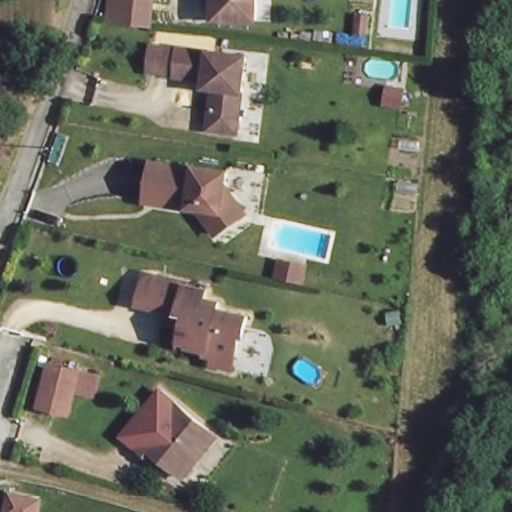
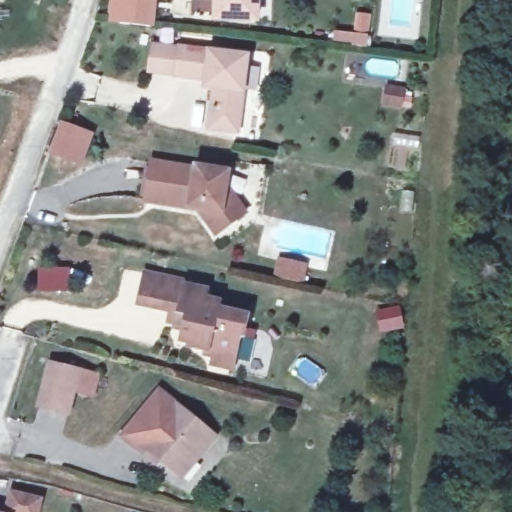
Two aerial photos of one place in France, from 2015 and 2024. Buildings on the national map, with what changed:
unchanged [(107,16),(107,0),(155,0),(151,22),(107,16)]
unchanged [(218,21),(218,0),(259,0),(258,22),(218,21)]
unchanged [(242,55),(229,131),(201,126),(210,79),(171,72),(171,71),(143,66),(147,41),(175,45),(242,55)]
new [(82,166),(49,154),(61,121),(95,133),(82,166)]
unchanged [(223,185),(242,212),(212,233),(195,209),(142,200),(149,159),(225,171),(223,185)]
unchanged [(298,261),(296,276),(271,270),(274,255),(298,261)]
unchanged [(156,281),(186,287),(185,290),(205,295),(203,303),(218,307),(216,314),(246,320),(242,340),(238,340),(233,365),(205,358),(206,354),(189,350),(189,346),(181,345),(187,318),(150,310),(156,281)]
unchanged [(95,369),(88,395),(71,392),(67,411),(32,402),(45,359),(95,369)]
unchanged [(209,435),(189,460),(183,456),(170,472),(150,455),(146,460),(132,448),(169,403),(209,435)]
unchanged [(0,511),(7,512),(0,512),(0,511)]

